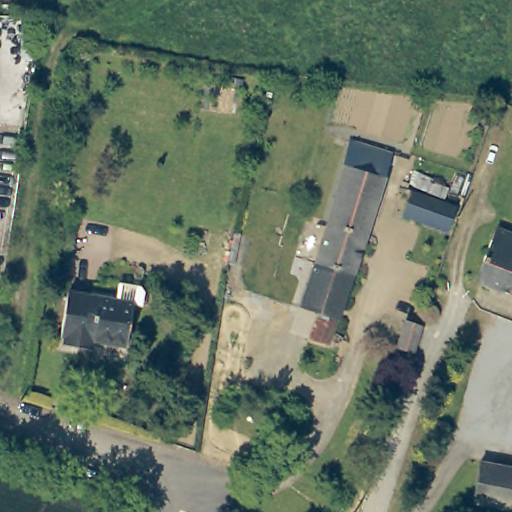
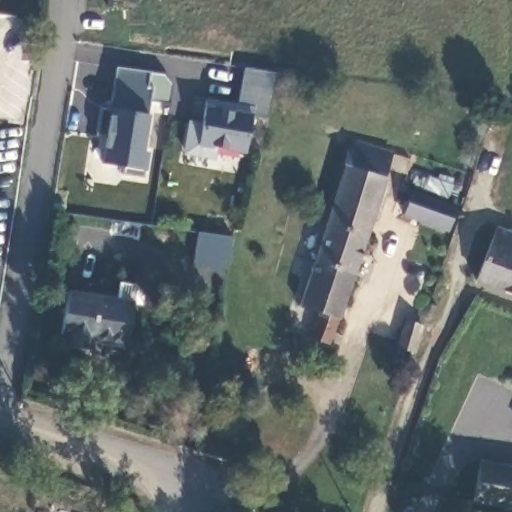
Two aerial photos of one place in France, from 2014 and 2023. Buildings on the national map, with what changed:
new [(101,108),(111,109),(118,66),(149,71),(147,86),(153,87),(149,113),(144,150),(149,151),(146,169),(145,175),(124,173),(124,166),(103,162),(108,134),(96,133),(101,108)]
new [(217,147),(215,158),(183,154),(188,120),(203,121),(207,105),(211,106),(213,98),(253,106),(252,112),(246,152),(217,147)]
unchanged [(307,330),(319,307),(302,302),(309,280),(319,246),(352,136),(390,148),(384,171),(386,172),(367,231),(339,313),(327,339),(307,330)]
unchanged [(456,206),(446,232),(404,216),(412,189),(456,206)]
unchanged [(512,233),(512,295),(476,280),(498,227),(512,233)]
new [(197,229),(233,234),(228,269),(193,264),(197,229)]
unchanged [(73,348),(52,345),(54,335),(49,334),(56,291),(105,299),(108,282),(129,285),(132,289),(130,303),(124,302),(116,345),(84,339),(82,349),(73,348)]
unchanged [(432,302),(434,303),(437,305),(438,307),(439,310),(439,313),(439,316),(438,318),(437,320),(434,322),(432,323),(429,324),(426,324),(424,323),(423,323),(422,322),(421,321),(419,320),(419,319),(418,317),(417,315),(417,314),(417,311),(417,310),(418,308),(418,307),(419,306),(420,305),(421,304),(422,303),(424,302),(426,301),(428,301),(429,301),(431,301),(432,302)]
unchanged [(422,327),(414,352),(398,346),(406,322),(422,327)]
unchanged [(473,502),(481,462),(512,468),(512,510),(473,502)]

